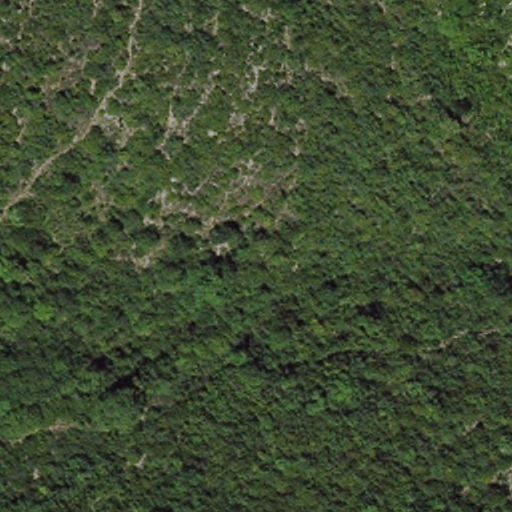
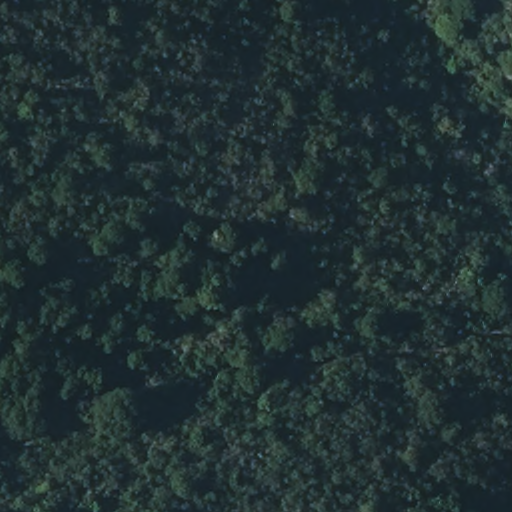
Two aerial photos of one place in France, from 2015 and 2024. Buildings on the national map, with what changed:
[]

